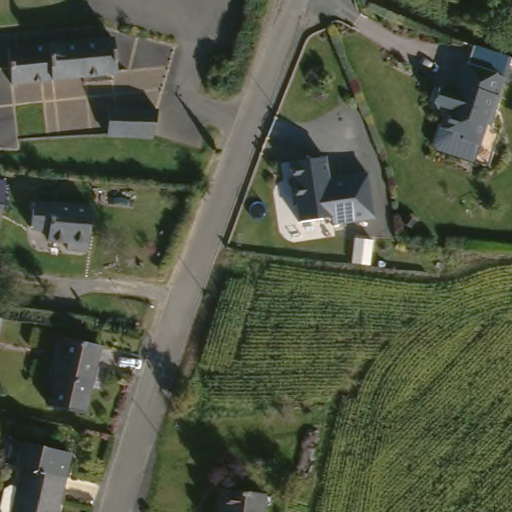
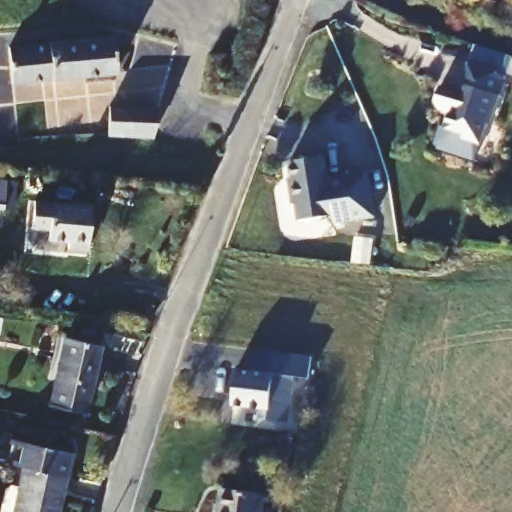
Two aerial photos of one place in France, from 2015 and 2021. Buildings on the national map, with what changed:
unchanged [(4,55),(108,45),(111,75),(7,90),(4,55)]
unchanged [(502,79),(486,127),(483,125),(476,145),(459,140),(460,135),(442,130),(447,114),(435,110),(432,104),(437,89),(443,85),(451,89),(458,85),(465,66),(502,79)]
unchanged [(112,115),(159,122),(163,124),(157,152),(145,150),(106,145),(112,115)]
unchanged [(376,219),(336,225),(334,218),(294,224),(289,160),(330,154),(335,176),(368,170),(376,219)]
unchanged [(1,211),(0,211),(0,181),(5,181),(1,211)]
unchanged [(86,255),(64,252),(65,245),(43,242),(44,232),(29,230),(32,203),(91,210),(86,255)]
new [(0,328),(0,319),(2,319),(0,328)]
unchanged [(97,350),(84,410),(51,403),(63,343),(97,350)]
new [(310,378),(295,377),(291,422),(259,419),(260,410),(233,406),(236,370),(248,370),(249,348),(311,355),(310,378)]
unchanged [(27,471),(7,467),(13,445),(73,458),(63,503),(22,495),(27,471)]
unchanged [(229,486),(267,493),(264,512),(223,512),(229,486)]
unchanged [(62,512),(18,512),(22,495),(63,503),(62,512)]

